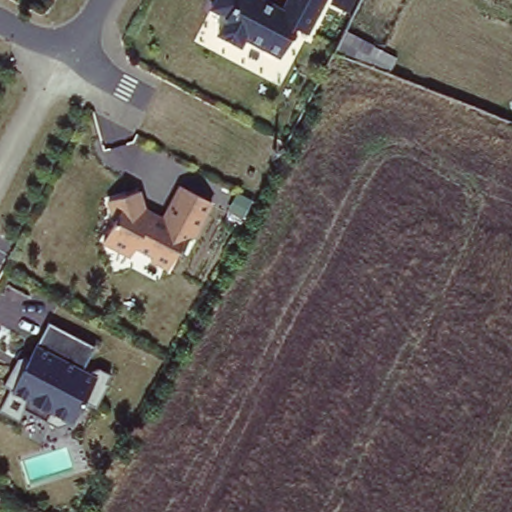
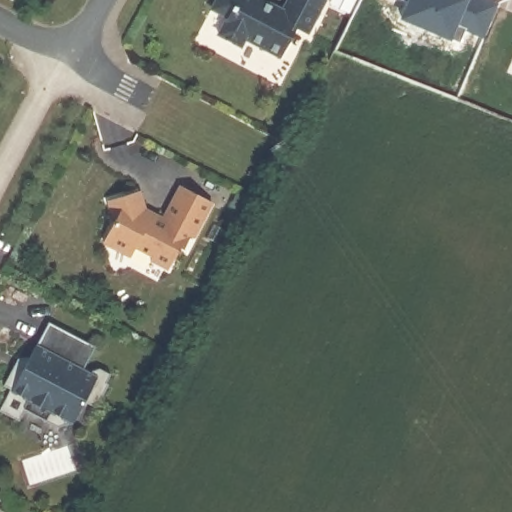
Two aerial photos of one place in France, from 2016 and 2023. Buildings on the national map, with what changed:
unchanged [(268,0),(279,6),(282,0),(323,0),(308,35),(292,26),(277,56),(246,40),(238,48),(216,34),(223,12),(210,9),(214,0),(268,0)]
new [(484,40),(470,34),(464,49),(405,25),(411,6),(395,0),(485,0),(497,5),(484,40)]
unchanged [(141,195),(145,210),(160,219),(177,189),(210,209),(167,272),(134,254),(129,262),(101,244),(117,213),(107,203),(141,195)]
unchanged [(49,324),(92,349),(82,366),(96,374),(63,432),(7,394),(49,324)]

